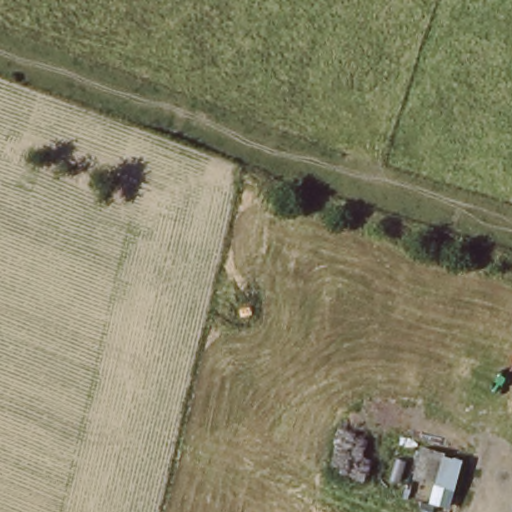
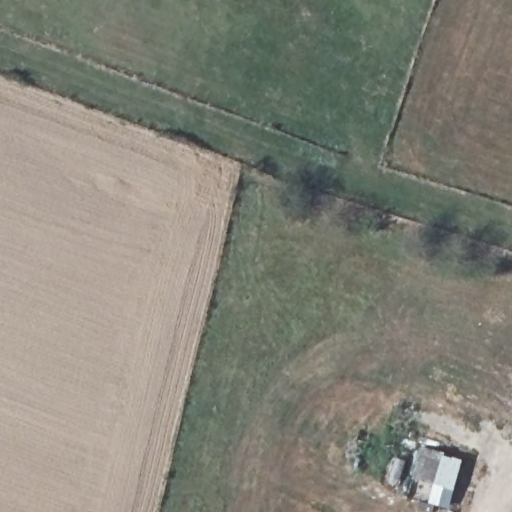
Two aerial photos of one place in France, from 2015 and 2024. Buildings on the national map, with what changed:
unchanged [(427,449),(450,455),(442,484),(419,477),(427,449)]

